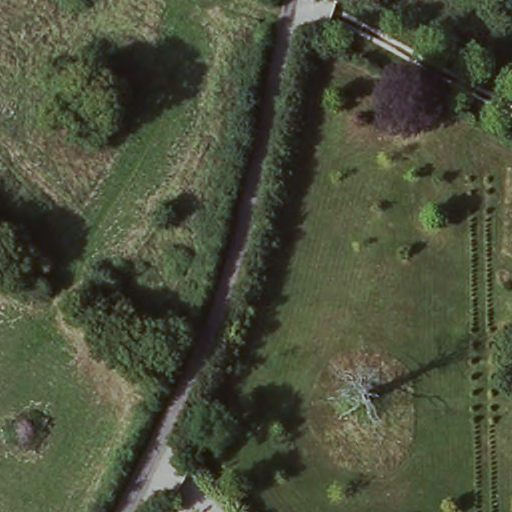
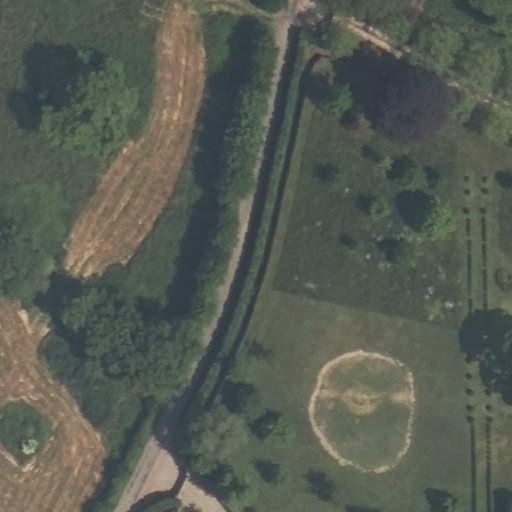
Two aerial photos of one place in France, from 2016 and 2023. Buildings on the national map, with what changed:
[]

